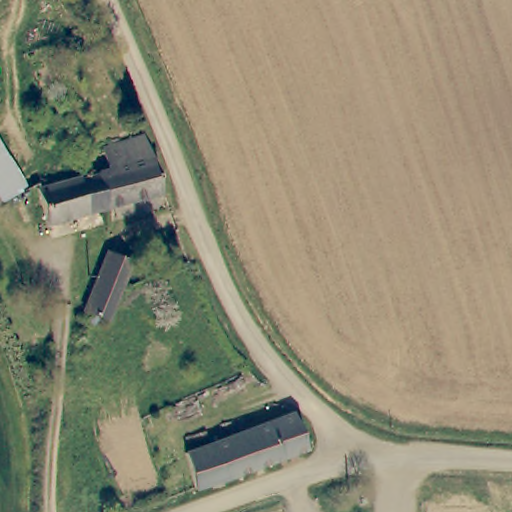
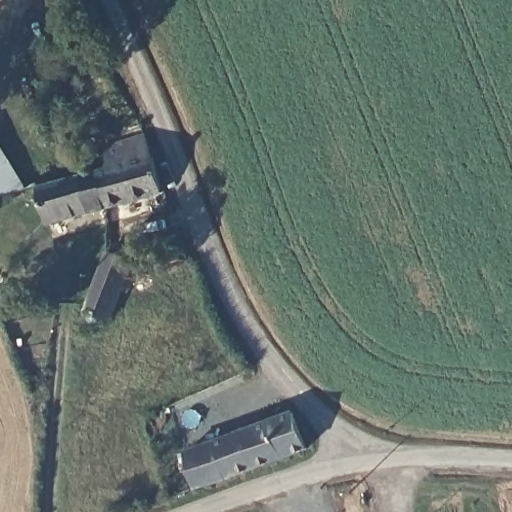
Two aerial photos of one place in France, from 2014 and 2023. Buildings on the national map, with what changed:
unchanged [(164,190),(107,208),(107,207),(96,174),(95,171),(109,166),(103,146),(146,133),(164,190)]
unchanged [(0,203),(0,143),(27,187),(0,203)]
unchanged [(79,174),(81,178),(96,174),(107,207),(107,208),(47,224),(36,189),(79,174)]
unchanged [(116,312),(113,319),(108,318),(107,322),(105,325),(102,327),(97,328),(94,326),(93,326),(91,323),(90,319),(90,315),(92,312),(87,310),(90,301),(111,252),(137,260),(124,294),(116,312)]
unchanged [(293,414),(307,450),(197,488),(184,453),(293,414)]

